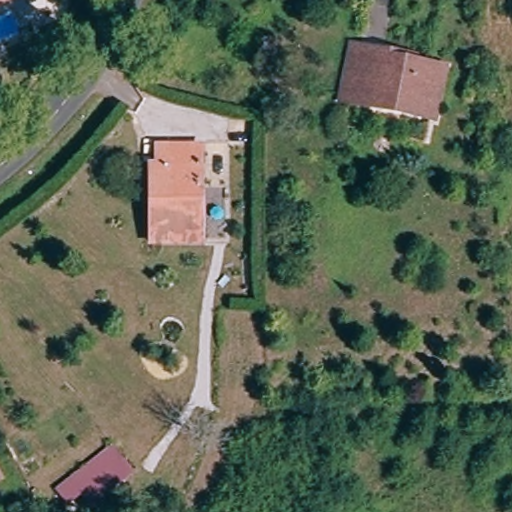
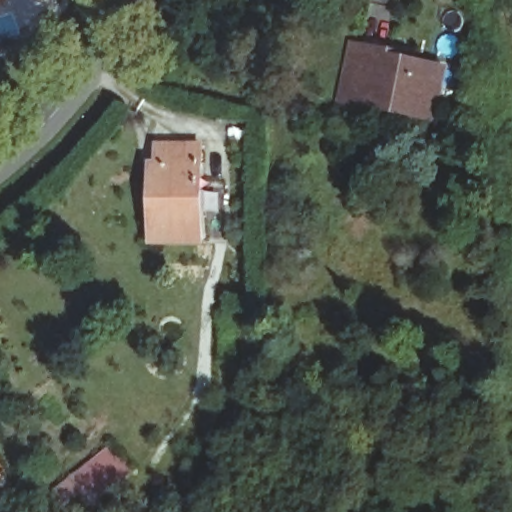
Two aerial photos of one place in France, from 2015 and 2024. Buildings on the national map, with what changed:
unchanged [(439,118),(356,102),(341,99),(355,46),(369,48),(393,53),(421,57),(420,68),(450,74),(439,118)]
unchanged [(157,151),(207,149),(202,242),(153,242),(157,151)]
unchanged [(129,472),(93,503),(84,491),(67,505),(56,492),(112,447),(129,472)]
unchanged [(7,481),(0,485),(0,468),(7,481)]

